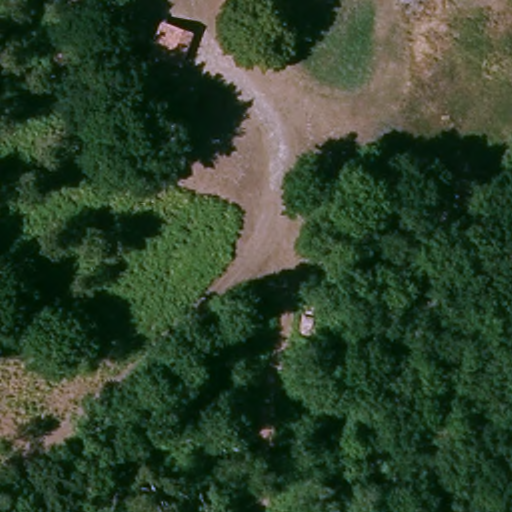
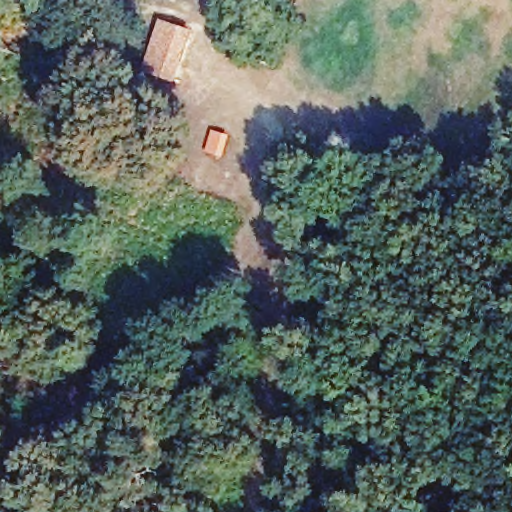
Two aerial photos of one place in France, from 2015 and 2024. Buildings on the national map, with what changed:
new [(175,82),(149,73),(158,47),(162,48),(165,39),(159,36),(164,22),(193,32),(175,82)]
unchanged [(172,93),(160,109),(144,97),(155,82),(172,93)]

